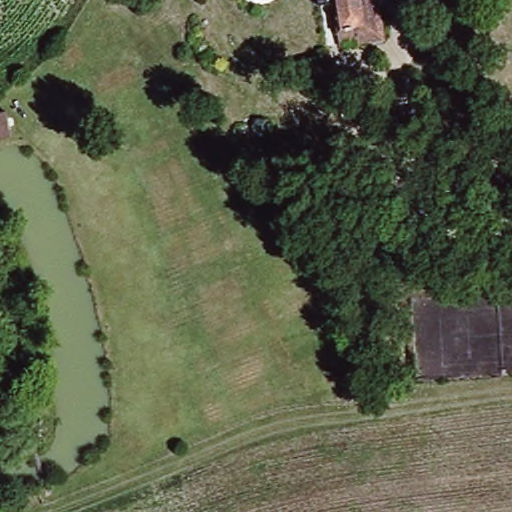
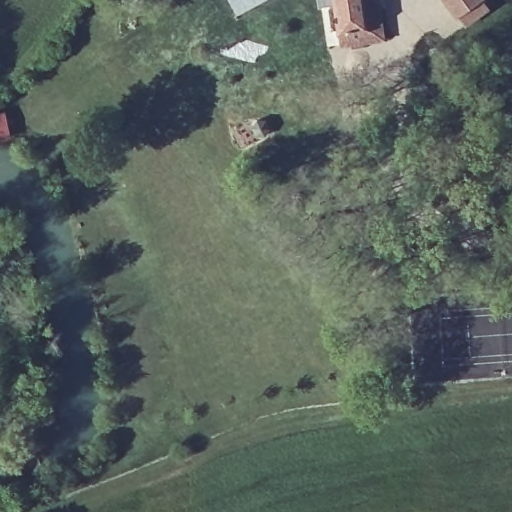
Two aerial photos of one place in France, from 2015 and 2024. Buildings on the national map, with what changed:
unchanged [(344,41),(342,29),(338,28),(332,0),(375,0),(381,35),(344,41)]
new [(493,6),(465,27),(444,0),(489,0),(493,6)]

